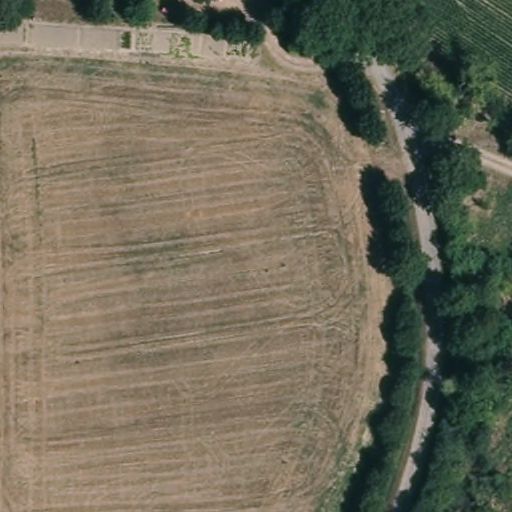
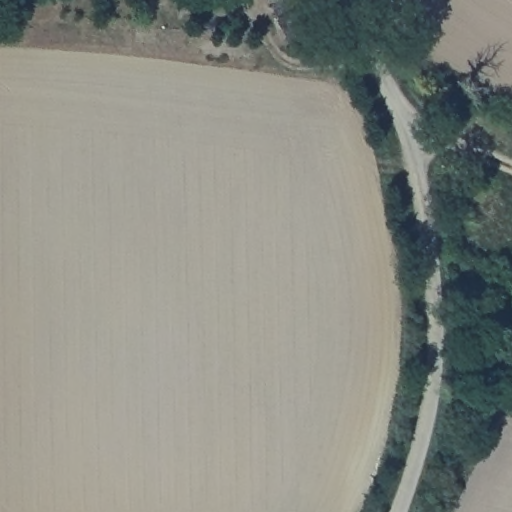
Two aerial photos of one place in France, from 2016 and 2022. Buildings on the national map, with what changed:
unchanged [(510,310),(512,306),(512,336),(501,332),(510,310)]

